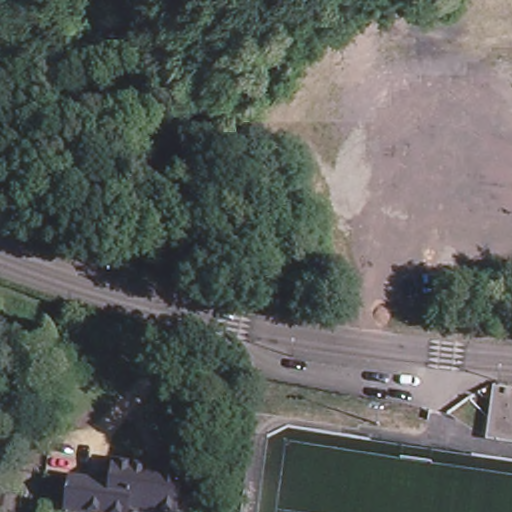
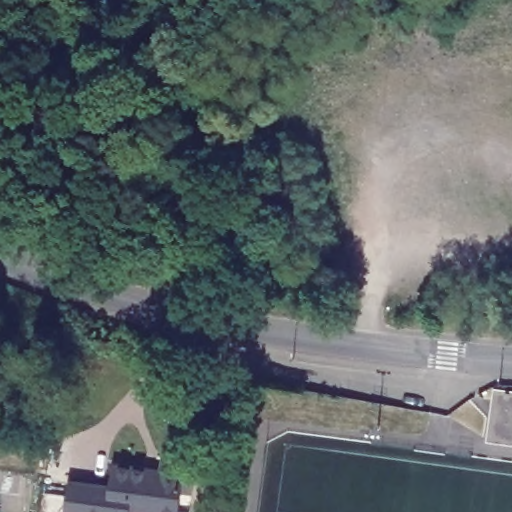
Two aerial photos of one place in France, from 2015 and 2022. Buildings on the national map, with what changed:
unchanged [(486,436),(491,388),(512,390),(512,439),(486,436)]
unchanged [(134,510),(133,512),(66,512),(74,458),(147,467),(162,468),(162,460),(187,462),(180,510),(189,512),(151,512),(134,510)]

